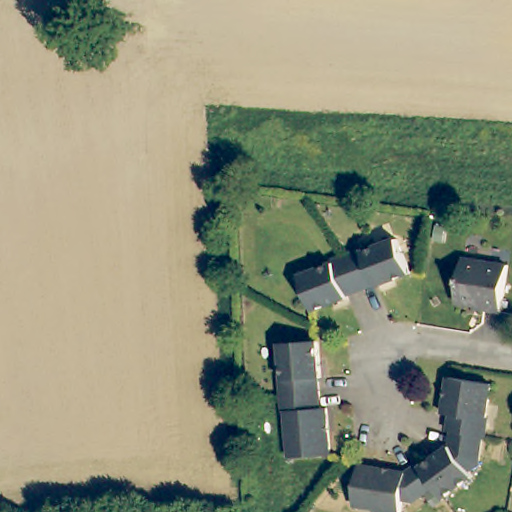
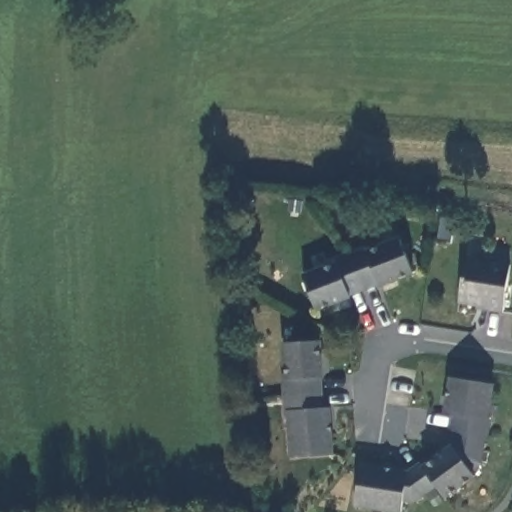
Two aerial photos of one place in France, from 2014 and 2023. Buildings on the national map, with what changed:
unchanged [(349,294),(350,296),(316,309),(303,275),(336,263),(335,260),(366,249),(367,250),(400,238),(413,272),(379,285),(378,283),(349,294)]
unchanged [(510,264),(502,312),(485,309),(486,307),(458,302),(465,258),(510,264)]
unchanged [(322,377),(319,377),(322,408),(328,407),(331,454),(291,457),(288,411),(285,412),(283,378),(286,378),(283,343),(320,340),(322,377)]
unchanged [(436,485),(423,467),(451,444),(454,431),(449,430),(452,414),(444,413),(450,377),(492,384),(487,419),(489,419),(486,436),(484,436),(480,463),(469,470),(474,476),(444,497),(436,485)]
unchanged [(423,467),(436,485),(414,501),(402,499),(400,512),(354,504),(360,464),(406,471),(420,463),(423,467)]

